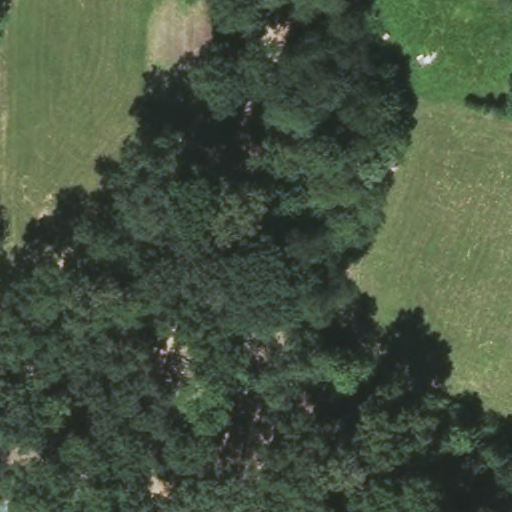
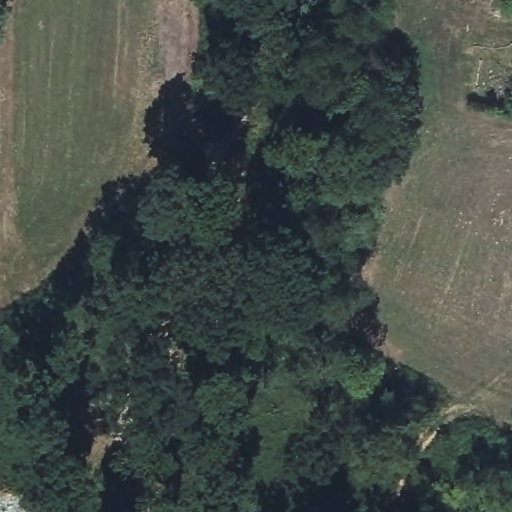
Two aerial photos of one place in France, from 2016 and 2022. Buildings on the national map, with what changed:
[]

